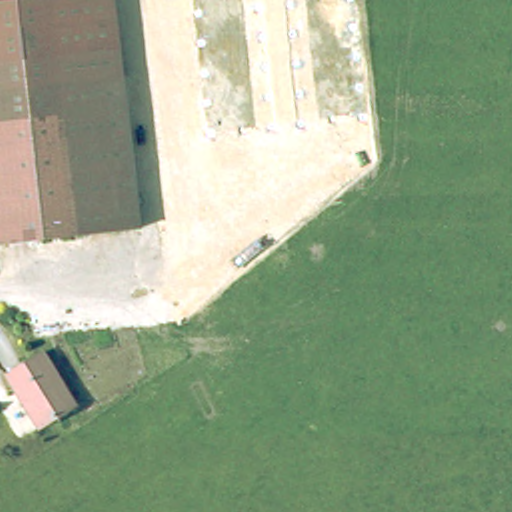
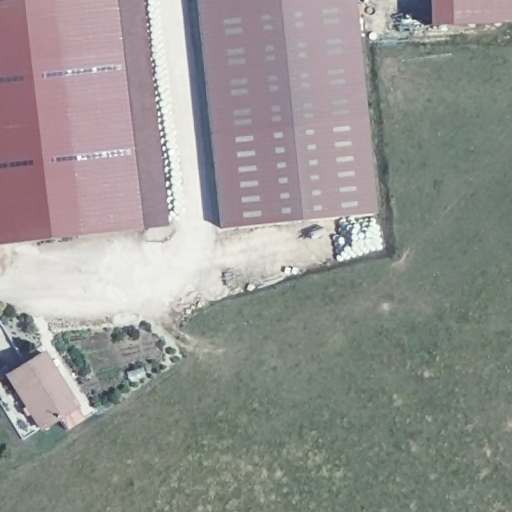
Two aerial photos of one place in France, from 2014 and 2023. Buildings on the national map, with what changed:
unchanged [(0,236),(0,0),(113,0),(137,221),(0,236)]
new [(140,0),(164,226),(139,229),(137,221),(113,0),(140,0)]
new [(217,231),(194,0),(353,0),(376,211),(217,231)]
new [(427,25),(426,0),(512,0),(512,23),(427,25)]
unchanged [(72,401),(37,424),(5,370),(39,348),(72,401)]

